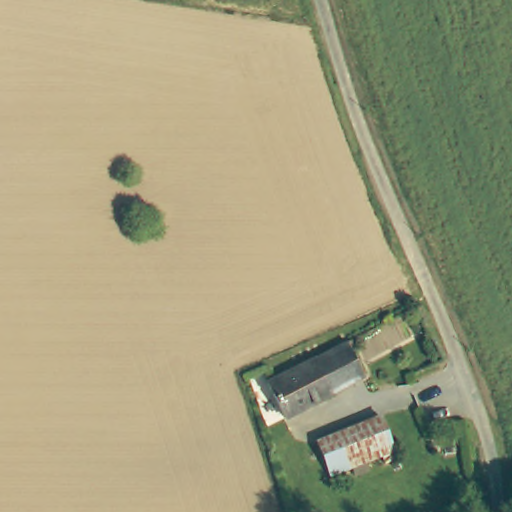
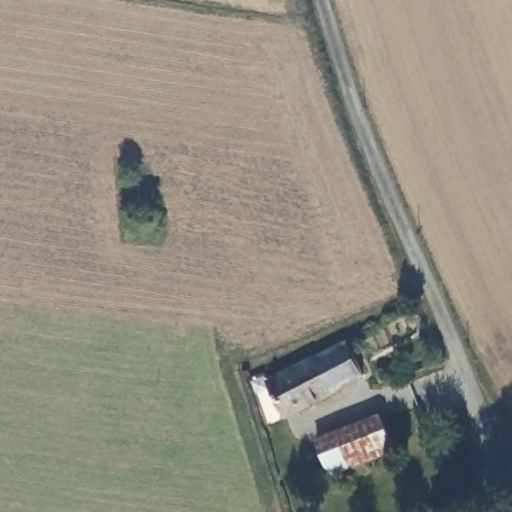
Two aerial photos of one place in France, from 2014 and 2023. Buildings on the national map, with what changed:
unchanged [(365,375),(286,417),(268,384),(348,343),(365,375)]
unchanged [(397,452),(333,476),(319,444),(383,421),(397,452)]

